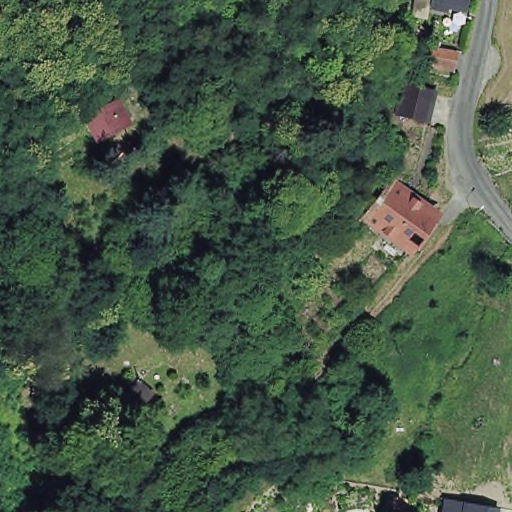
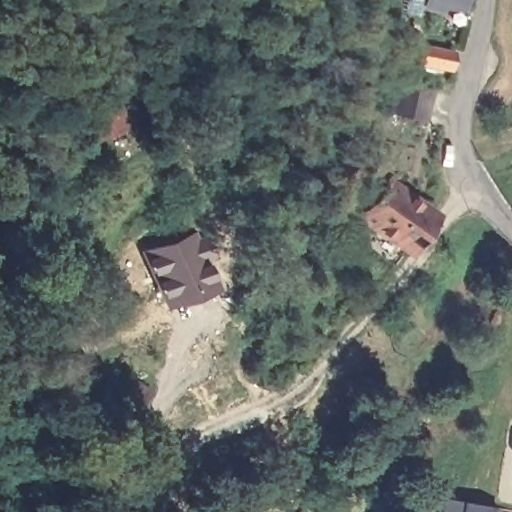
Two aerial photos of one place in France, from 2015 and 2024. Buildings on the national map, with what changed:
unchanged [(445,6),(444,12),(429,10),(430,0),(464,0),(462,10),(445,6)]
unchanged [(444,51),(455,53),(452,69),(426,65),(429,49),(444,51)]
unchanged [(434,91),(428,120),(398,114),(404,85),(434,91)]
unchanged [(114,106),(123,124),(97,137),(88,120),(114,106)]
unchanged [(408,251),(374,226),(366,220),(375,209),(391,187),(399,193),(433,217),(408,251)]
new [(200,229),(218,286),(164,307),(141,250),(200,229)]
demolished [(166,352),(186,345),(191,361),(172,368),(166,352)]
unchanged [(462,502),(499,508),(498,512),(440,512),(443,499),(462,502)]

